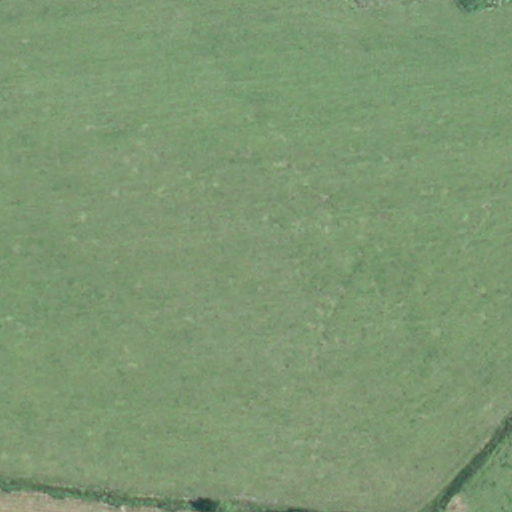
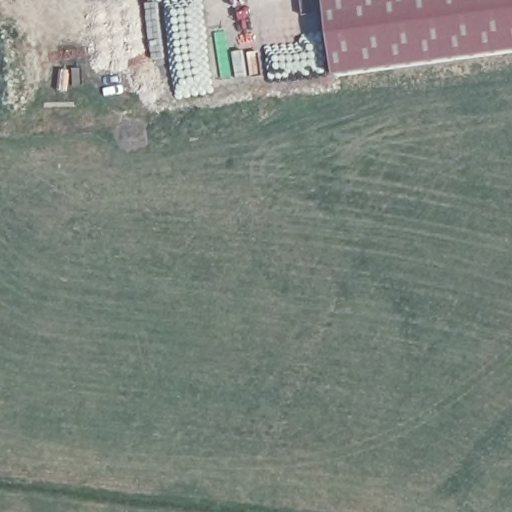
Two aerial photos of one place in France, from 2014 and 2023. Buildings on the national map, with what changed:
new [(341,77),(330,0),(512,0),(512,53),(341,77)]

